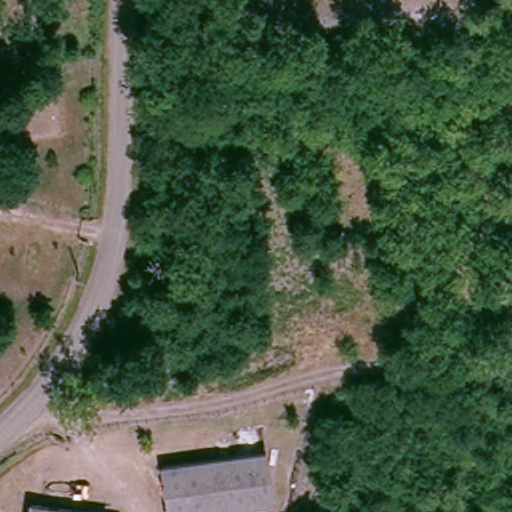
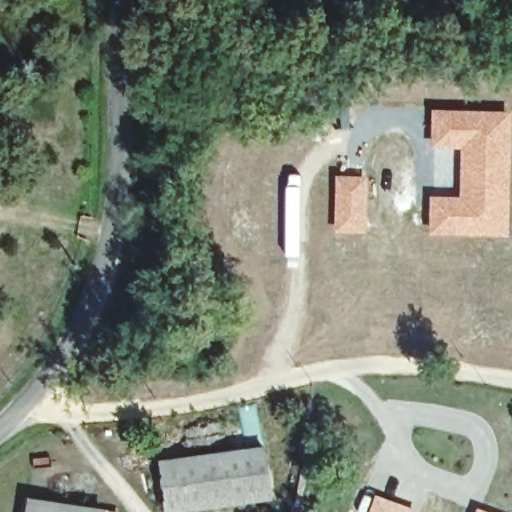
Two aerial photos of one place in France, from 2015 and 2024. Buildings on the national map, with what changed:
new [(458,196),(460,149),(430,147),(431,108),(512,110),(512,132),(509,237),(428,236),(428,195),(458,196)]
new [(334,174),(368,176),(367,234),(333,233),(334,174)]
unchanged [(268,453),(272,502),(199,512),(170,512),(164,465),(268,453)]
new [(374,494),(418,510),(417,512),(368,512),(374,494)]

